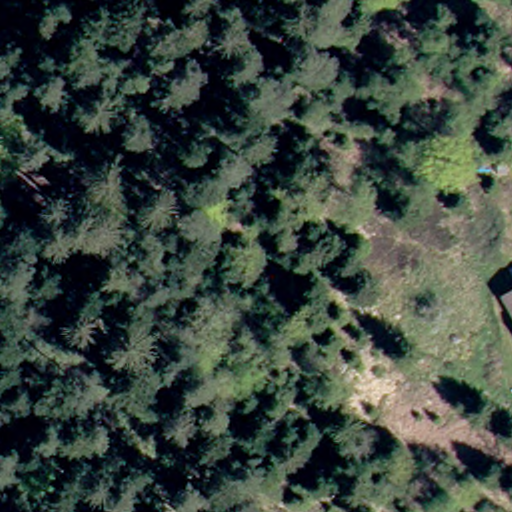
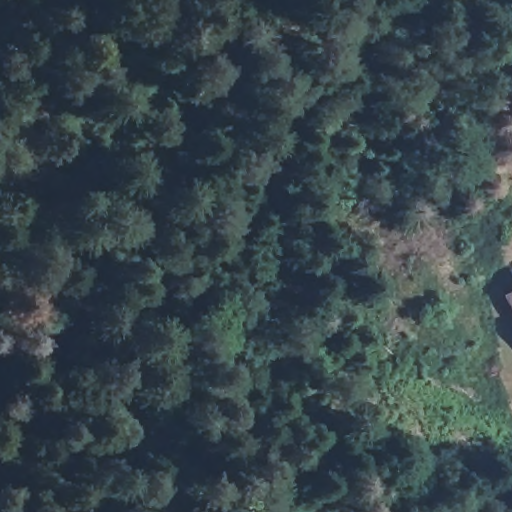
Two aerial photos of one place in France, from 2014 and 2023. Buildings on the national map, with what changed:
unchanged [(498,290),(512,282),(512,312),(498,290)]

